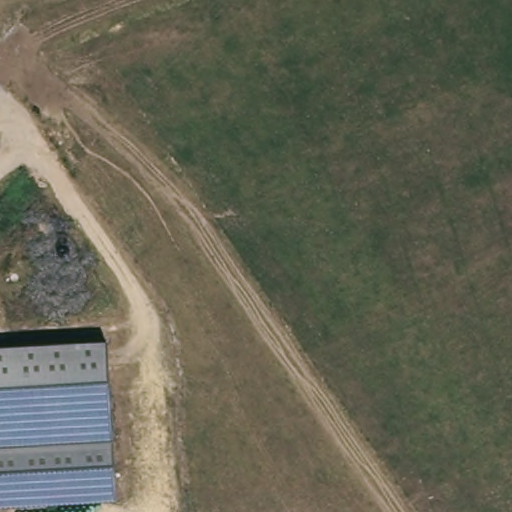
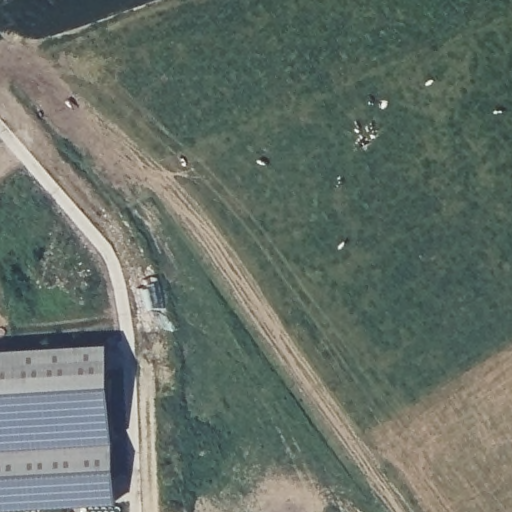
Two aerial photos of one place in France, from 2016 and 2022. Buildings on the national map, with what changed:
unchanged [(117,503),(0,509),(0,348),(107,342),(117,503)]

